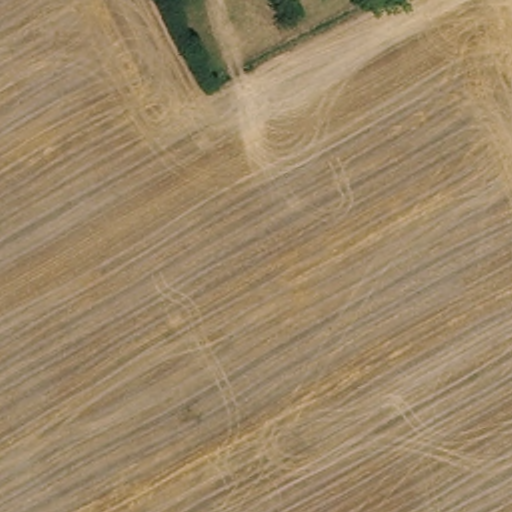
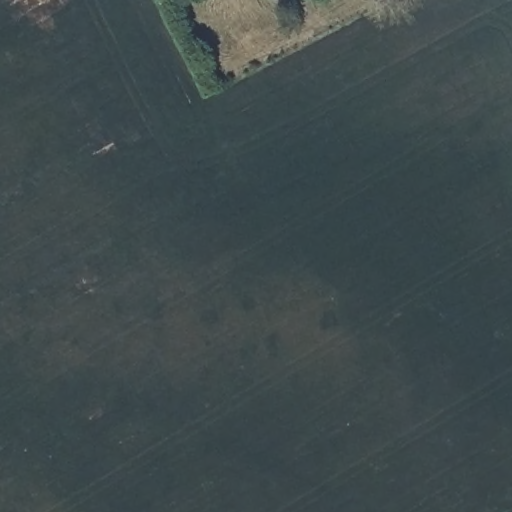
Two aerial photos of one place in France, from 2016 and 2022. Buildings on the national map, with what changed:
[]

